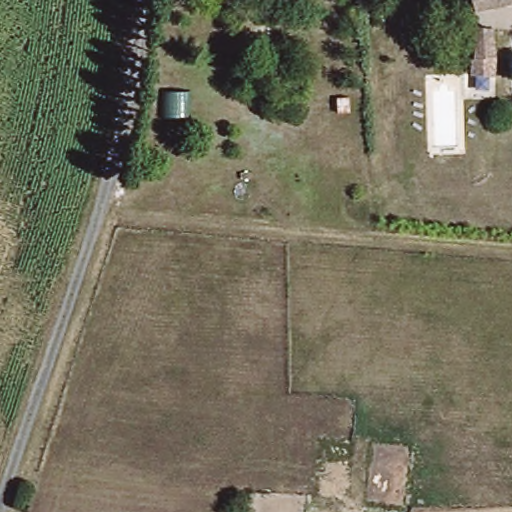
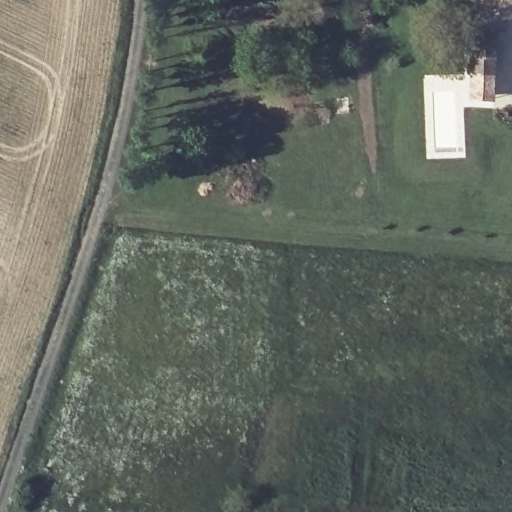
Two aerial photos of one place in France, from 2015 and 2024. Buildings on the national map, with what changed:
unchanged [(476,23),(472,0),(512,0),(512,16),(476,23)]
unchanged [(491,78),(475,78),(475,31),(492,32),(491,78)]

